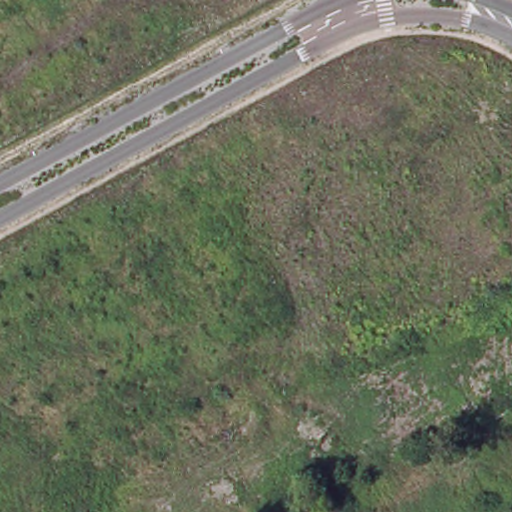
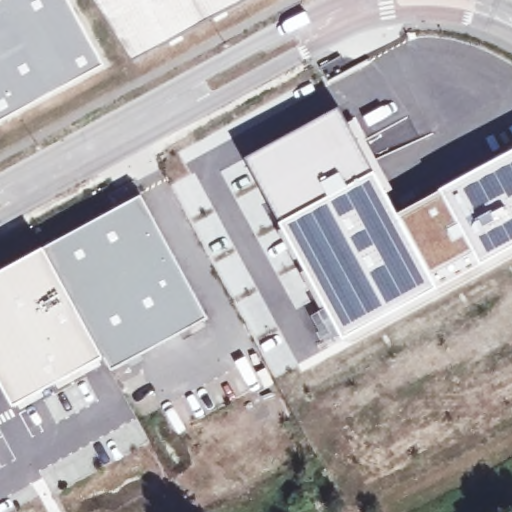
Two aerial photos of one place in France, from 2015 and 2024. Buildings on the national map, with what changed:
new [(0,120),(0,0),(68,0),(102,64),(0,120)]
new [(228,16),(215,23),(212,15),(179,34),(183,40),(171,47),(167,40),(132,59),(94,0),(241,0),(224,9),(228,16)]
new [(338,107),(347,122),(398,213),(436,288),(387,312),(340,339),(329,320),(321,325),(313,314),(322,308),(278,224),(243,158),(338,107)]
new [(512,149),(512,246),(481,264),(440,189),(512,149)]
new [(440,189),(481,264),(436,288),(398,213),(440,189)]
new [(142,197),(208,319),(111,371),(45,249),(142,197)]
new [(12,406),(0,383),(0,273),(45,249),(103,357),(12,406)]

